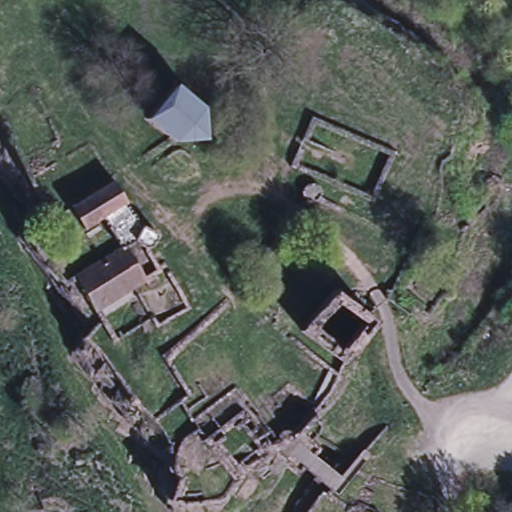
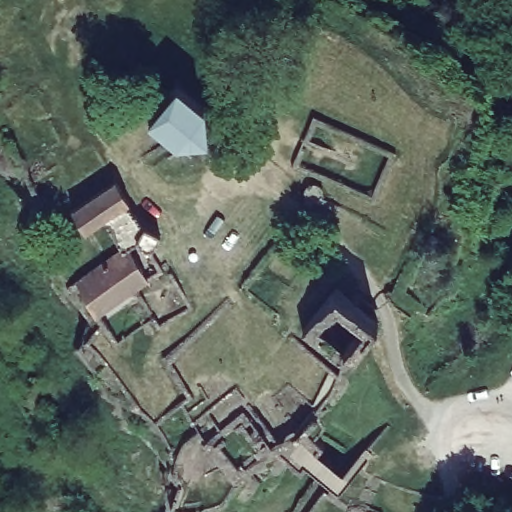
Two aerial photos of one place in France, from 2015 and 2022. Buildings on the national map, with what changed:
unchanged [(170,97),(196,119),(198,150),(167,151),(140,129),(170,97)]
unchanged [(75,275),(123,247),(110,222),(85,237),(70,209),(117,180),(140,219),(160,229),(153,246),(141,242),(128,250),(147,283),(100,312),(75,275)]
unchanged [(379,312),(345,356),(303,321),(336,279),(379,312)]

